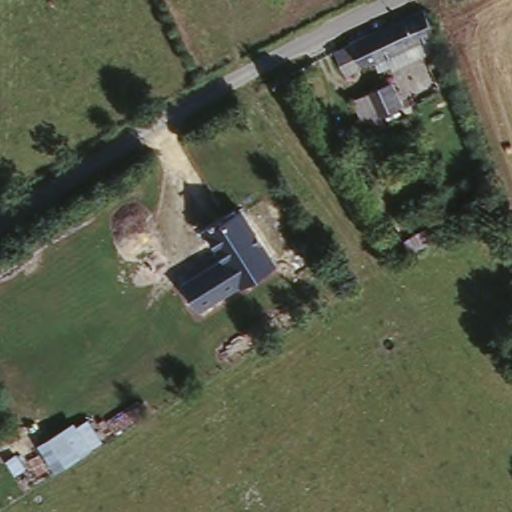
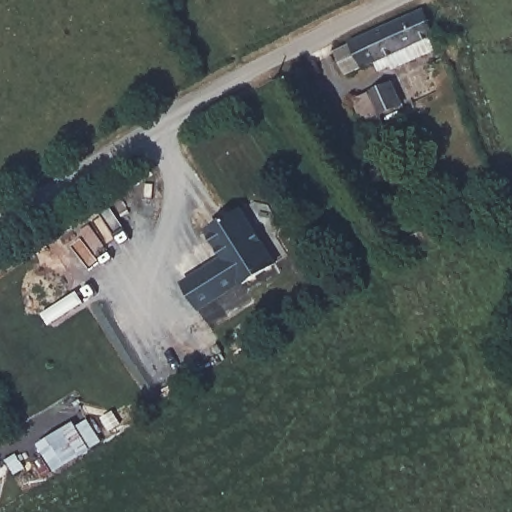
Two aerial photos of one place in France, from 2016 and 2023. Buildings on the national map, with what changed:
unchanged [(388,70),(387,65),(375,71),(370,62),(343,77),(332,54),(346,45),(345,44),(390,22),(416,10),(427,35),(433,47),(388,70)]
unchanged [(386,81),(398,105),(377,116),(381,127),(361,136),(348,100),(386,81)]
unchanged [(279,261),(241,285),(240,283),(199,310),(182,280),(223,256),(205,223),(237,202),(240,206),(243,205),(279,261)]
unchanged [(395,227),(402,242),(420,233),(425,244),(398,256),(383,232),(395,227)]
unchanged [(77,419),(79,423),(90,416),(104,440),(55,472),(38,442),(77,419)]

